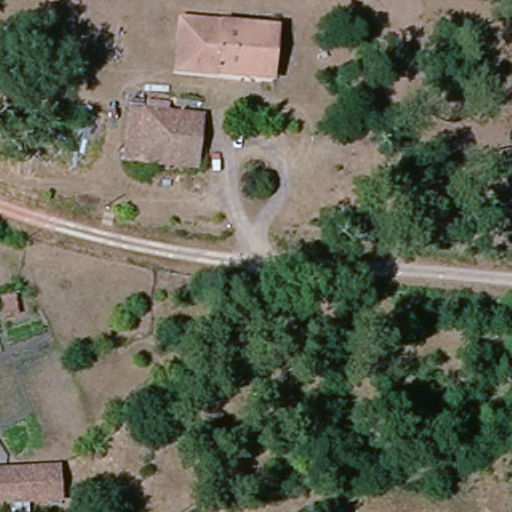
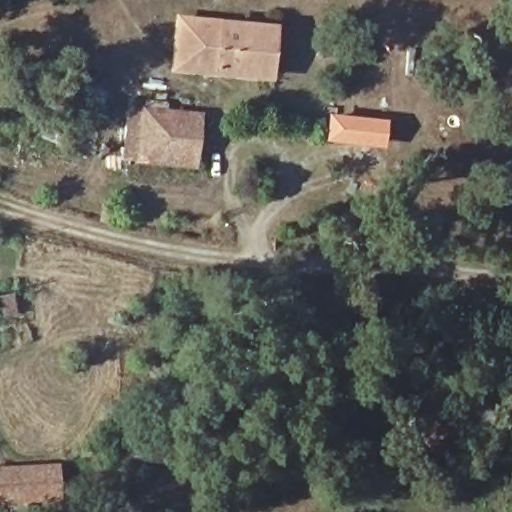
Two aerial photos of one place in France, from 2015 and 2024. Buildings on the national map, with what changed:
unchanged [(270,76),(258,76),(216,75),(216,66),(177,66),(178,22),(261,25),(274,24),(270,76)]
unchanged [(194,162),(140,159),(143,108),(195,112),(194,162)]
new [(332,143),(334,113),(389,119),(386,149),(332,143)]
unchanged [(58,499),(39,500),(0,501),(0,470),(39,469),(57,469),(58,499)]

